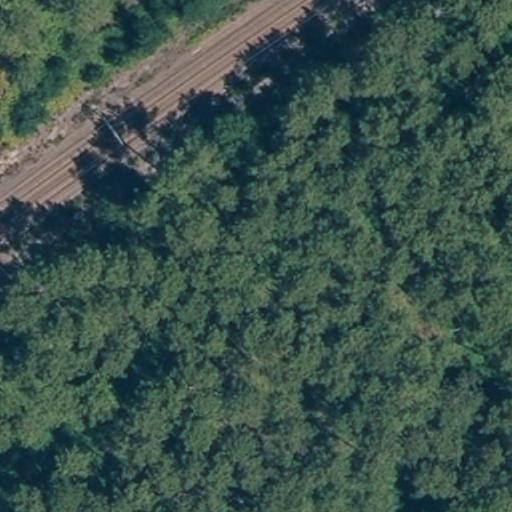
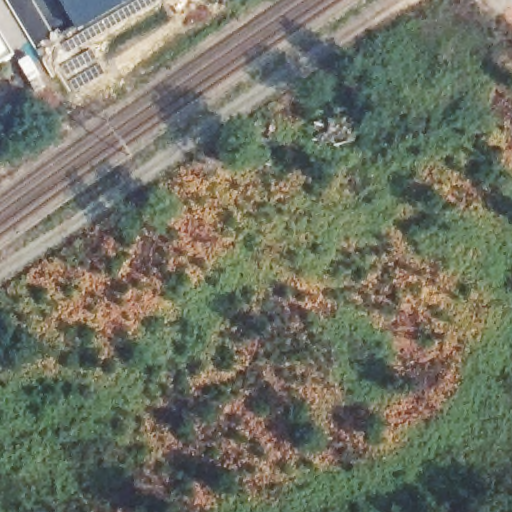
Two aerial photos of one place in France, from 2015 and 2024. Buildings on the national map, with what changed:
new [(101,15),(73,29),(56,0),(126,0),(101,15)]
new [(0,60),(0,33),(13,53),(0,60)]

